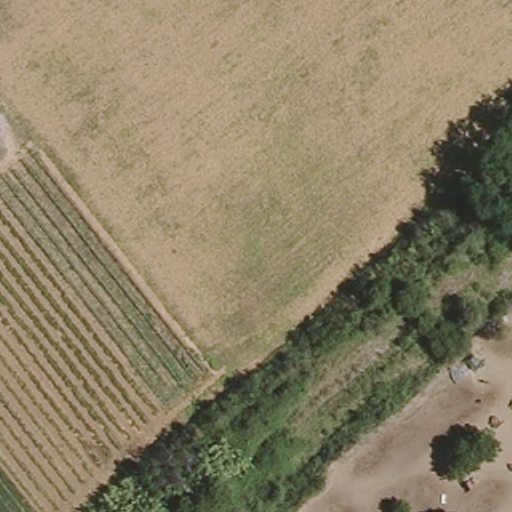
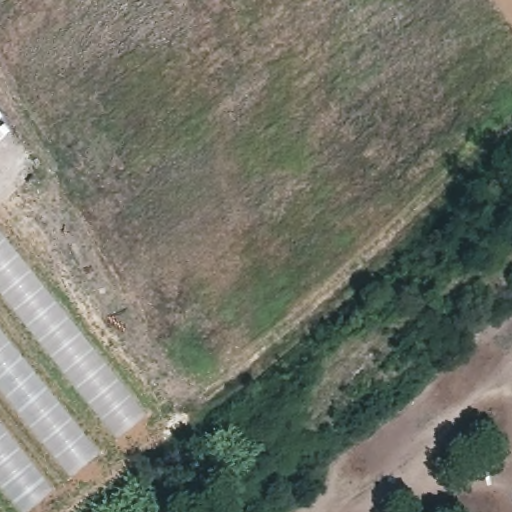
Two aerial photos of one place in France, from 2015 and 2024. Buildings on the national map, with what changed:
new [(119,438),(0,293),(0,231),(148,417),(119,438)]
new [(74,476),(0,387),(0,328),(100,455),(74,476)]
new [(29,512),(20,512),(0,487),(0,429),(51,491),(29,512)]

